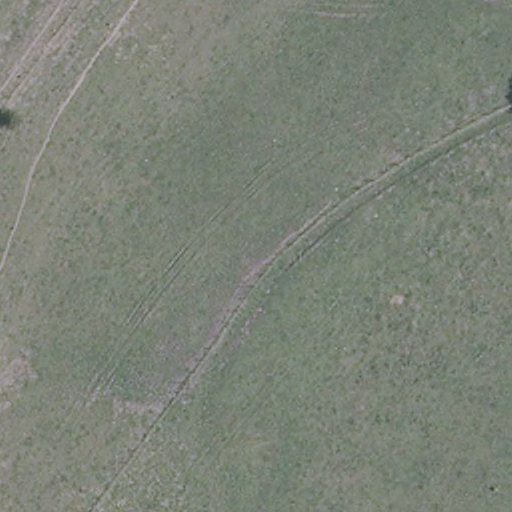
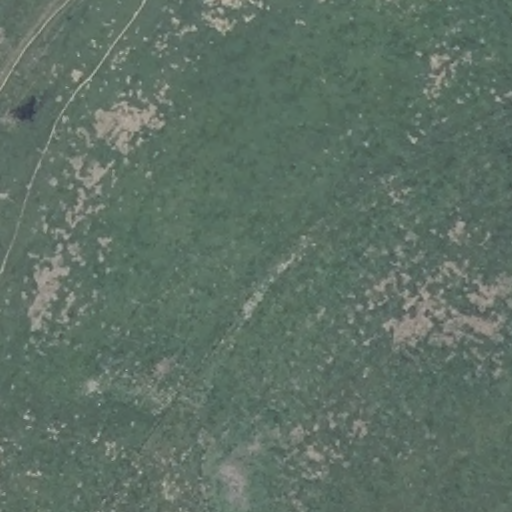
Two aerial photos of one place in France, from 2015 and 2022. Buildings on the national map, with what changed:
[]

